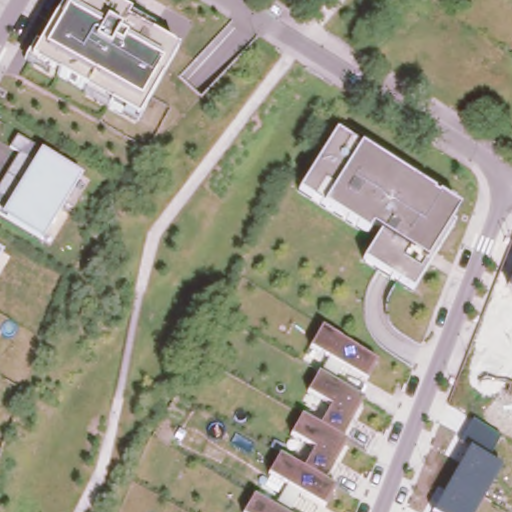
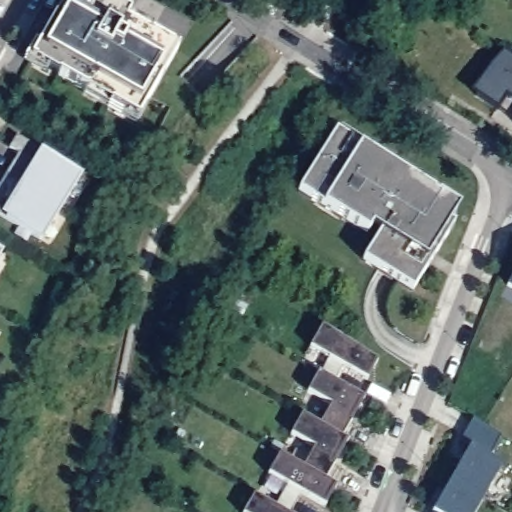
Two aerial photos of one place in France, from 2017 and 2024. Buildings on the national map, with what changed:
unchanged [(86,90),(47,68),(44,71),(24,59),(33,43),(37,44),(53,18),(63,0),(88,0),(97,5),(100,0),(104,0),(128,13),(124,21),(175,50),(135,120),(134,123),(84,95),(86,90)]
new [(497,110),(476,95),(494,68),(490,66),(507,51),(512,55),(512,101),(507,97),(497,110)]
unchanged [(379,231),(371,226),(365,233),(322,205),(297,190),(334,131),(359,147),(457,207),(450,220),(454,224),(412,290),(362,259),(379,231)]
unchanged [(83,175),(41,241),(0,217),(0,184),(20,152),(10,146),(17,135),(83,175)]
unchanged [(3,251),(0,256),(0,250),(3,251)]
unchanged [(512,279),(512,290),(507,287),(512,279)]
unchanged [(342,366),(333,382),(362,399),(340,438),(345,441),(324,480),(334,488),(324,506),(299,491),(287,512),(243,512),(254,495),(275,507),(287,484),(267,473),(279,453),(302,466),(313,447),(290,433),(300,413),(319,424),(330,405),(307,391),(327,357),(309,346),(320,326),(375,361),(365,379),(342,366)]
unchanged [(468,449),(461,442),(472,420),(500,435),(489,456),(501,463),(475,512),(434,512),(434,511),(468,449)]

